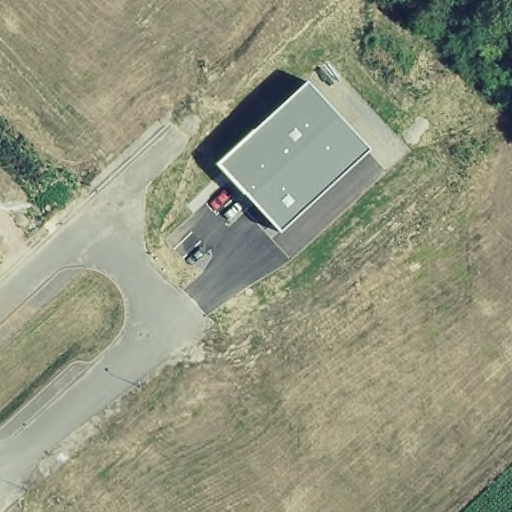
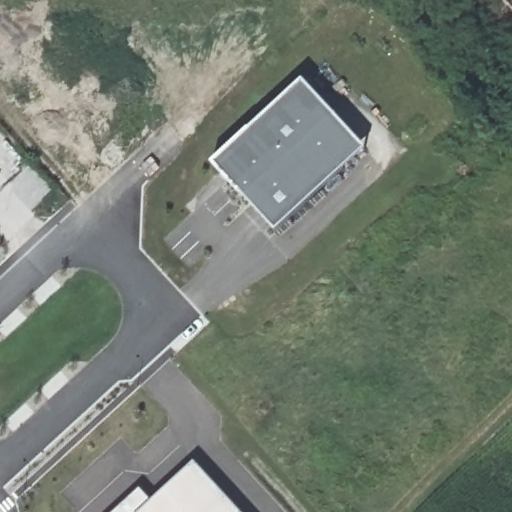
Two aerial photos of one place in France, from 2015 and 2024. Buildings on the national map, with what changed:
unchanged [(303,80),(367,149),(277,231),(213,164),(303,80)]
new [(129,508),(188,454),(241,512),(105,512),(120,498),(129,508)]

